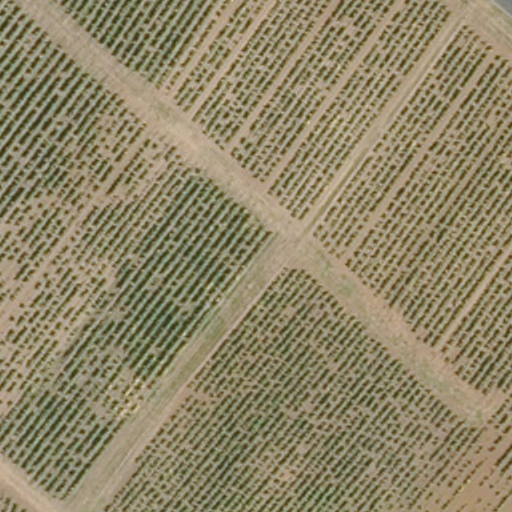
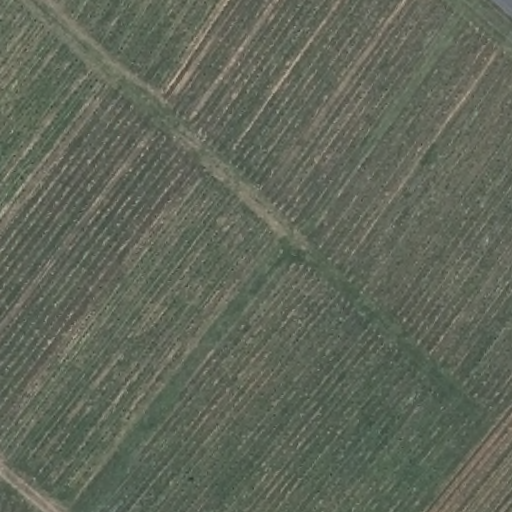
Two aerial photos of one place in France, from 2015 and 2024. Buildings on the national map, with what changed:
[]

